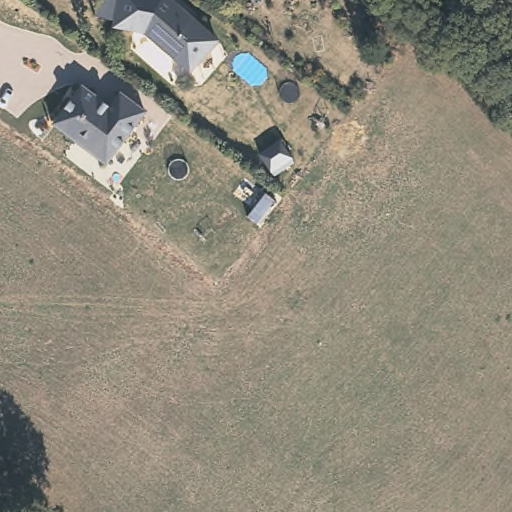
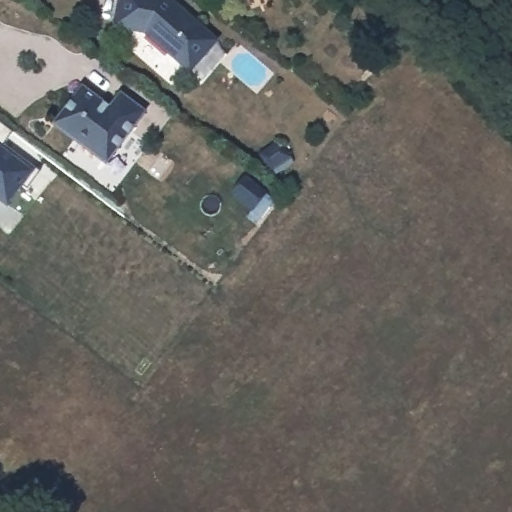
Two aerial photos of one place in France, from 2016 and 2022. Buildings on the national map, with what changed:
unchanged [(191,70),(147,30),(117,24),(119,19),(121,6),(122,0),(174,0),(219,40),(191,70)]
unchanged [(106,105),(118,90),(144,109),(104,162),(50,120),(79,84),(106,105)]
new [(12,131),(3,145),(35,169),(39,170),(27,188),(23,184),(6,207),(0,203),(0,122),(12,131)]

